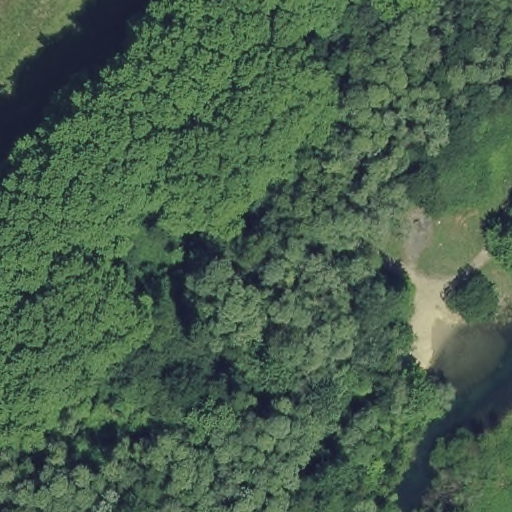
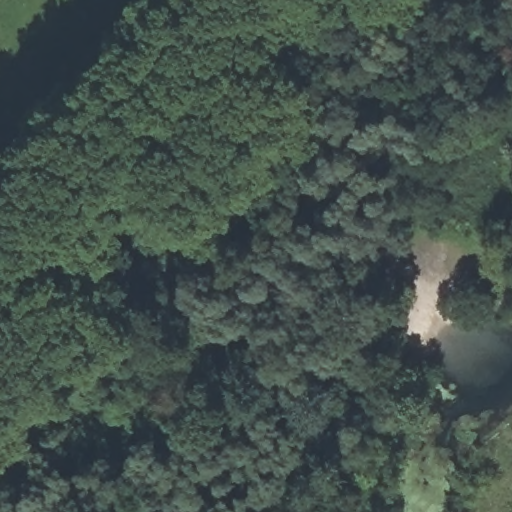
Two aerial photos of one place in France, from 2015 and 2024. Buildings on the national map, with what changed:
unchanged [(429,242),(400,240),(401,210),(426,211),(429,242)]

